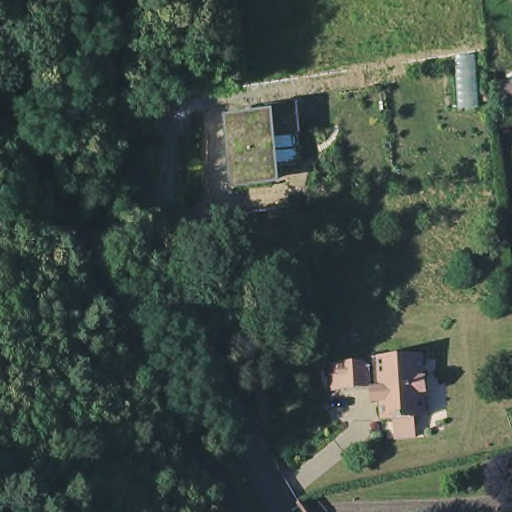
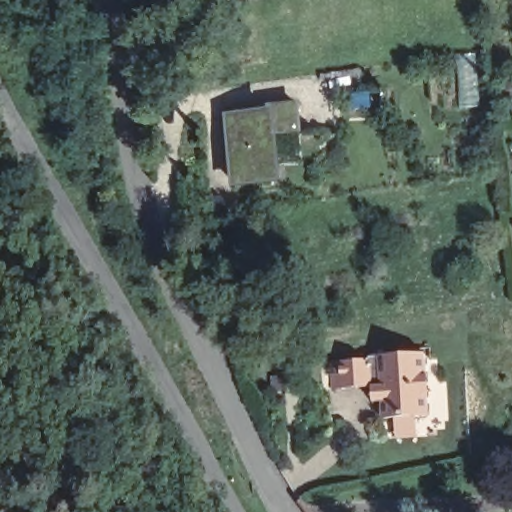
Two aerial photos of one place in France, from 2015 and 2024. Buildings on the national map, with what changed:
unchanged [(299,136),(280,139),(284,185),(232,192),(224,114),(268,109),(267,100),(293,97),(299,136)]
unchanged [(384,398),(374,399),(372,382),(343,385),(333,386),(330,361),(340,360),(364,357),(369,352),(377,352),(422,346),(430,410),(417,410),(419,423),(400,425),(399,412),(385,413),(384,398)]

